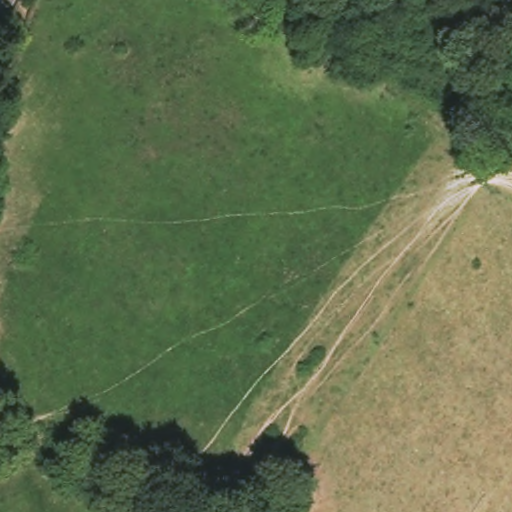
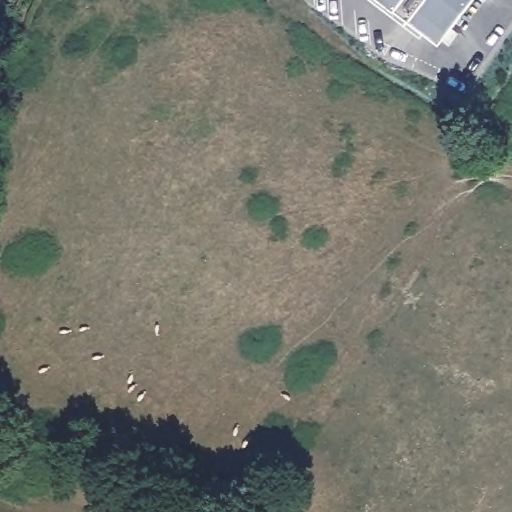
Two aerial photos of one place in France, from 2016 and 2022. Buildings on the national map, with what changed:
new [(378,0),(473,0),(438,46),(378,0)]

